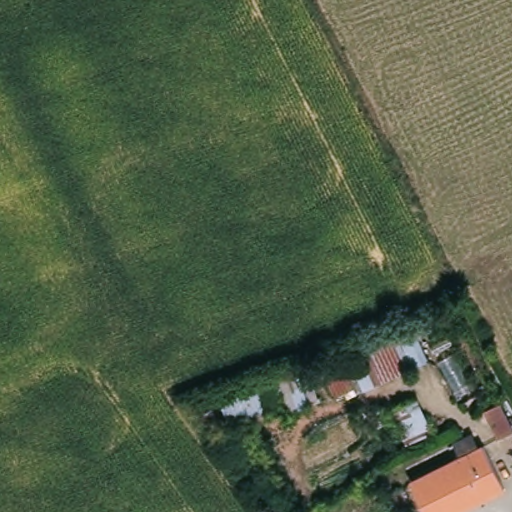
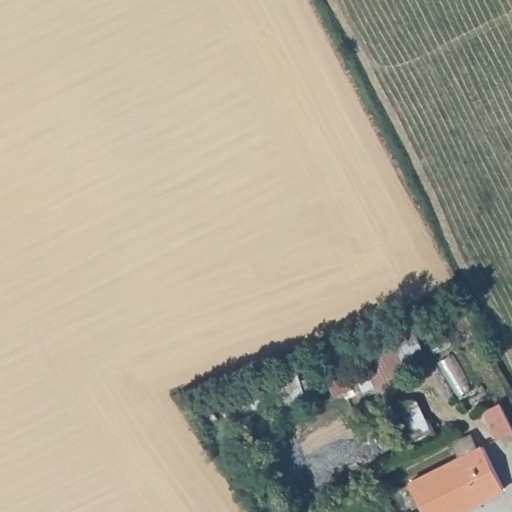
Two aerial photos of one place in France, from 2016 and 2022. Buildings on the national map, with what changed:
unchanged [(339,361),(346,371),(366,356),(363,347),(414,323),(431,359),(367,395),(361,385),(340,399),(327,371),(339,361)]
unchanged [(512,442),(503,446),(490,418),(506,410),(512,421),(512,442)]
unchanged [(505,491),(463,512),(423,512),(410,484),(483,448),(505,491)]

